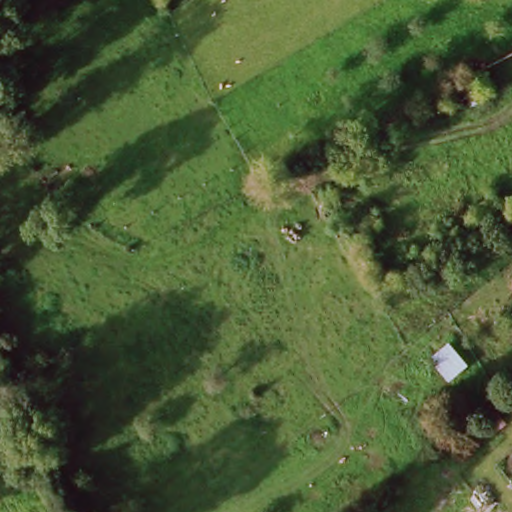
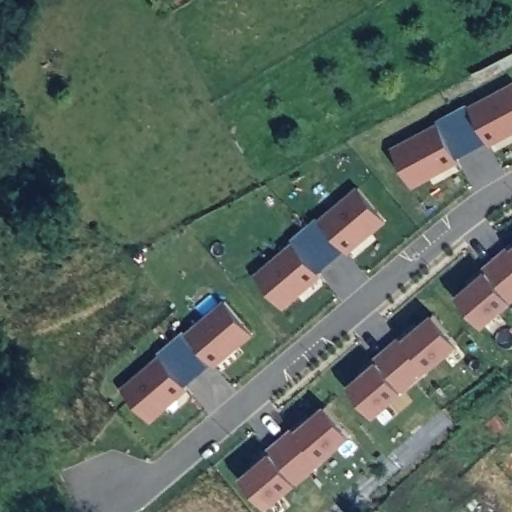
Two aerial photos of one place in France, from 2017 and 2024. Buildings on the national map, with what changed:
new [(512,88),(512,135),(408,195),(382,153),(509,82),(512,88)]
new [(377,231),(277,313),(247,280),(351,192),(377,231)]
new [(454,291),(506,247),(509,250),(512,247),(512,302),(484,326),(454,291)]
new [(246,333),(145,415),(115,383),(220,295),(246,333)]
new [(460,345),(375,416),(346,381),(398,337),(400,340),(432,312),(460,345)]
new [(294,426),(325,403),(353,435),(269,507),(242,476),(258,462),(294,426)]
demolished [(494,495),(507,512),(474,512),(494,495)]

